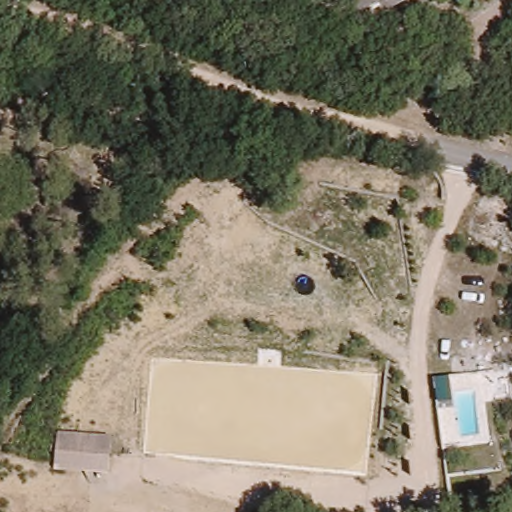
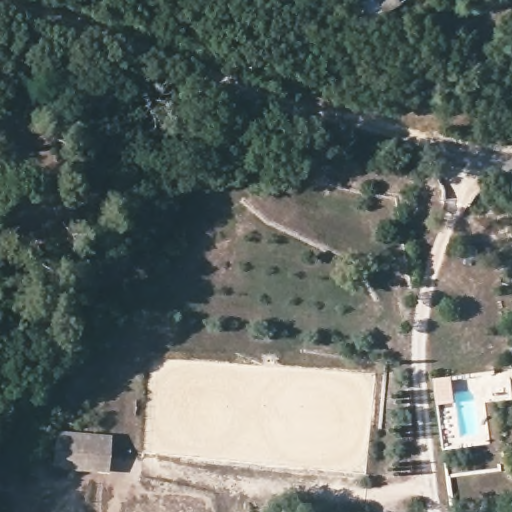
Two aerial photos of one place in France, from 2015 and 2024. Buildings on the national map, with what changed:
unchanged [(385,0),(388,0),(386,1),(385,0)]
unchanged [(408,2),(406,0),(411,0),(408,2)]
unchanged [(111,438),(107,472),(55,467),(58,434),(111,438)]

